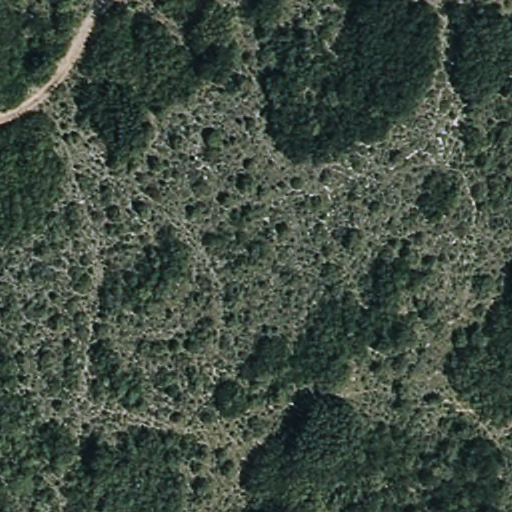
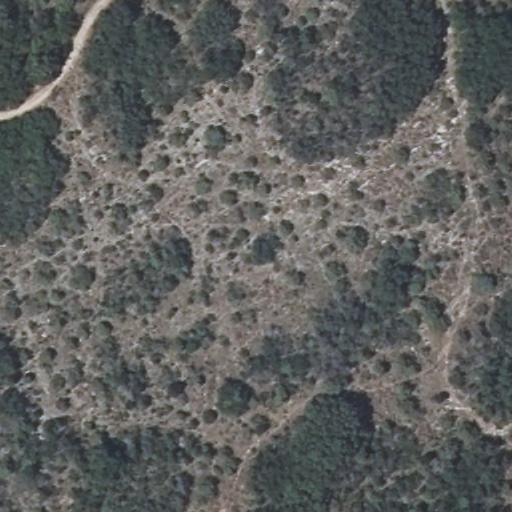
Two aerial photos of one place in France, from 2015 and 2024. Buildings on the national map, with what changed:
[]

